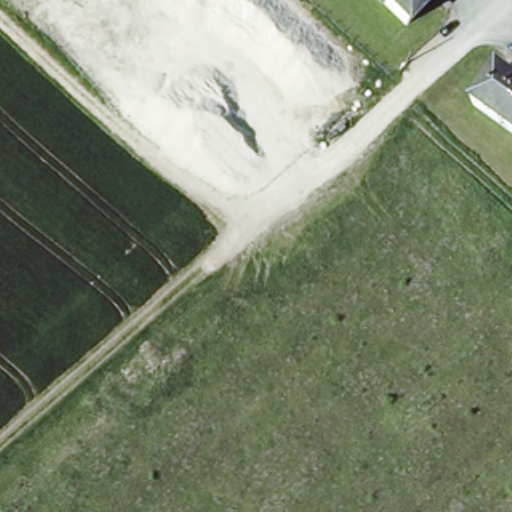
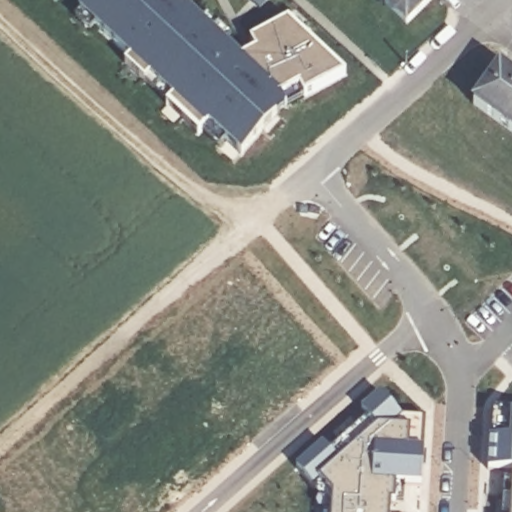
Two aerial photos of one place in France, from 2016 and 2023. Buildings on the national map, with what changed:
new [(88,0),(181,0),(202,20),(208,14),(231,36),(226,43),(240,57),(256,51),(251,39),(288,21),(345,73),(286,106),(241,154),(208,122),(204,126),(197,132),(167,104),(173,96),(150,74),(145,80),(126,63),(131,57),(80,9),(88,0)]
unchanged [(407,20),(386,0),(427,0),(407,20)]
unchanged [(476,102),(500,70),(512,78),(512,129),(476,102)]
new [(403,417),(426,418),(425,443),(419,449),(425,450),(421,485),(405,483),(403,503),(395,503),(390,503),(390,512),(331,512),(333,492),(325,483),(320,480),(312,485),(297,467),(323,444),(330,452),(338,442),(334,437),(351,422),(356,428),(369,417),(362,409),(377,396),(398,421),(403,417)]
new [(512,409),(512,415),(512,472),(487,470),(492,408),(512,409)]
new [(510,512),(512,488),(512,512),(510,512)]

